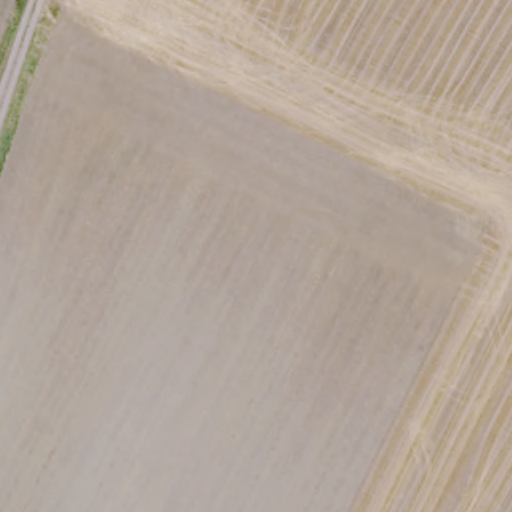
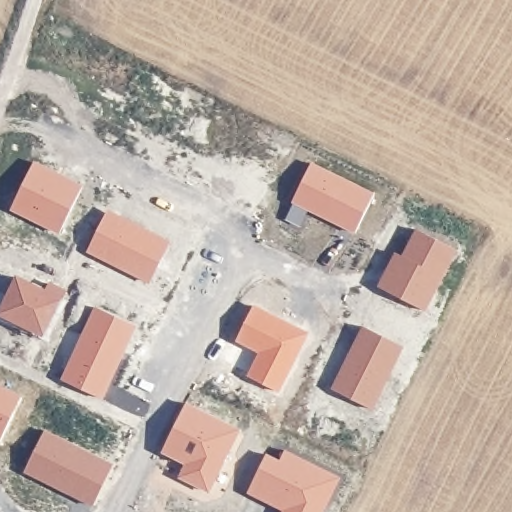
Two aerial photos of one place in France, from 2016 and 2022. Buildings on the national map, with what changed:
new [(59,236),(10,212),(33,160),(82,185),(59,236)]
new [(355,236),(308,214),(302,228),(283,220),(312,163),(373,195),(355,236)]
new [(150,283),(87,254),(106,212),(168,244),(150,283)]
new [(425,313),(377,287),(393,254),(402,257),(415,230),(457,253),(425,313)]
new [(43,340),(0,319),(0,309),(17,277),(45,292),(51,283),(67,291),(43,340)]
new [(280,394),(247,378),(258,354),(235,344),(252,307),(307,336),(280,394)]
new [(102,403),(59,380),(96,308),(135,326),(102,403)]
new [(373,412),(332,390),(363,327),(404,349),(373,412)]
new [(0,441),(0,387),(22,397),(0,441)]
new [(209,497),(177,481),(183,468),(160,454),(185,403),(239,432),(209,497)]
new [(92,510),(23,477),(45,430),(112,466),(92,510)]
new [(280,512),(246,497),(267,455),(280,462),(285,453),(340,479),(324,512),(280,512)]

